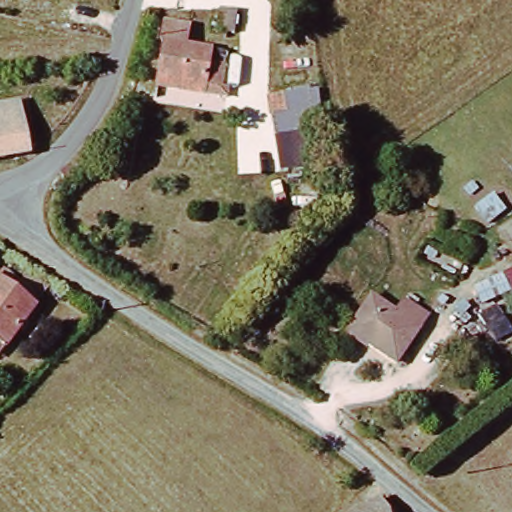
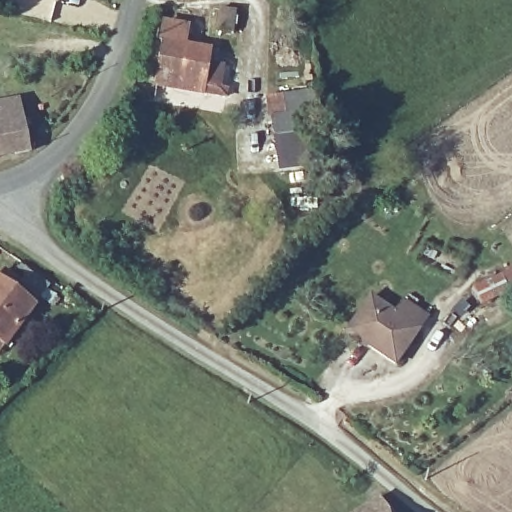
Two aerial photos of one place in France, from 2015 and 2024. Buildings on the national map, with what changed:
unchanged [(153,81),(158,13),(185,16),(182,41),(204,44),(199,88),(153,81)]
unchanged [(30,150),(0,155),(0,104),(21,100),(30,150)]
unchanged [(5,344),(0,349),(0,283),(31,308),(5,344)]
unchanged [(394,310),(401,300),(422,315),(389,363),(361,343),(364,338),(342,322),(366,289),(394,310)]
unchanged [(376,491),(391,512),(347,512),(376,491)]

